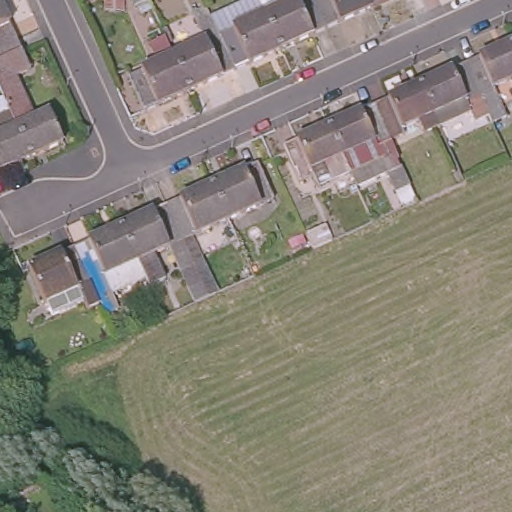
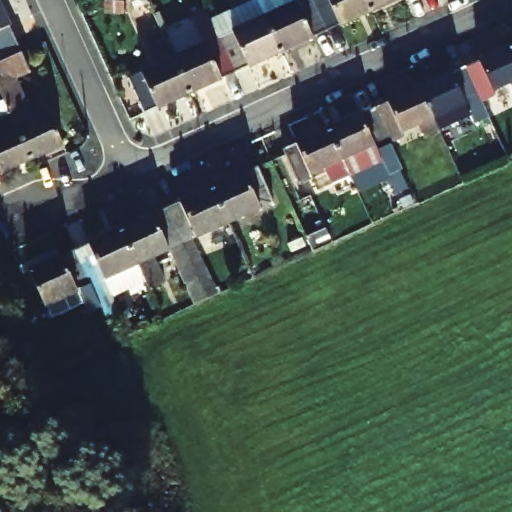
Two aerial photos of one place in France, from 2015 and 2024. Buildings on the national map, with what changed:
unchanged [(210,16),(244,0),(258,0),(279,46),(233,67),(210,16)]
unchanged [(258,0),(313,0),(324,25),(279,46),(258,0)]
unchanged [(313,0),(368,0),(369,4),(324,25),(313,0)]
unchanged [(368,0),(378,0),(369,4),(368,0)]
unchanged [(187,87),(171,52),(201,39),(189,12),(205,5),(210,16),(233,67),(187,87)]
unchanged [(3,102),(0,97),(0,10),(15,42),(21,57),(29,73),(13,80),(32,124),(48,116),(63,146),(29,161),(15,131),(9,117),(3,102)]
unchanged [(187,87),(142,107),(126,72),(159,57),(149,36),(161,30),(171,52),(187,87)]
unchanged [(512,35),(512,73),(512,72),(495,79),(508,107),(494,114),(487,97),(468,56),(512,35)]
unchanged [(468,56),(487,97),(441,118),(422,77),(468,56)]
unchanged [(422,77),(441,118),(424,126),(418,115),(404,121),(407,127),(393,133),(377,97),(422,77)]
unchanged [(377,97),(393,133),(413,177),(397,184),(389,166),(359,179),(353,165),(331,118),(377,97)]
unchanged [(0,174),(0,138),(2,137),(0,133),(0,121),(9,117),(15,131),(29,161),(0,174)]
unchanged [(318,179),(314,169),(301,175),(286,140),(331,118),(353,165),(318,179)]
unchanged [(209,177),(253,157),(270,192),(225,213),(209,177)]
unchanged [(209,177),(225,213),(179,234),(163,199),(209,177)]
unchanged [(155,197),(171,232),(196,288),(181,296),(156,240),(143,246),(156,276),(139,285),(133,272),(109,219),(155,197)]
unchanged [(109,219),(133,272),(103,287),(105,293),(91,301),(88,292),(64,239),(109,219)]
unchanged [(326,221),(334,237),(324,242),(315,246),(308,229),(326,221)]
unchanged [(70,299),(67,292),(35,307),(14,260),(60,239),(84,292),(70,299)]

